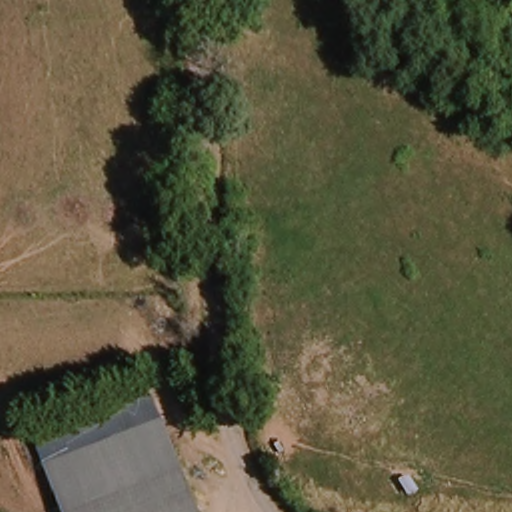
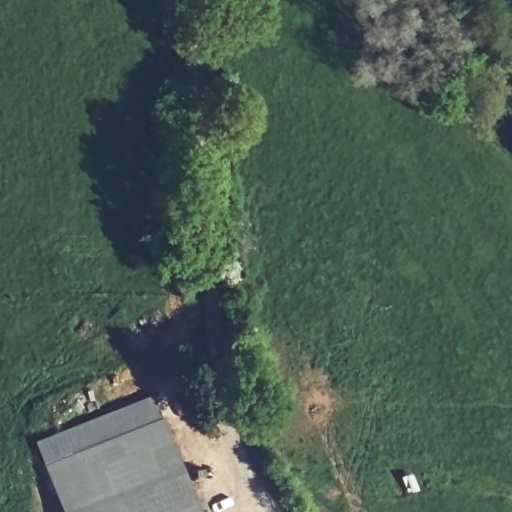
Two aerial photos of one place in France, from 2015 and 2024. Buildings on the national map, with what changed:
unchanged [(33,448),(150,400),(196,512),(59,512),(33,448)]

